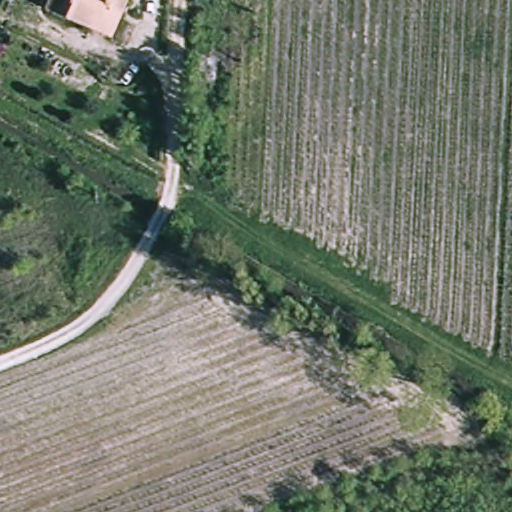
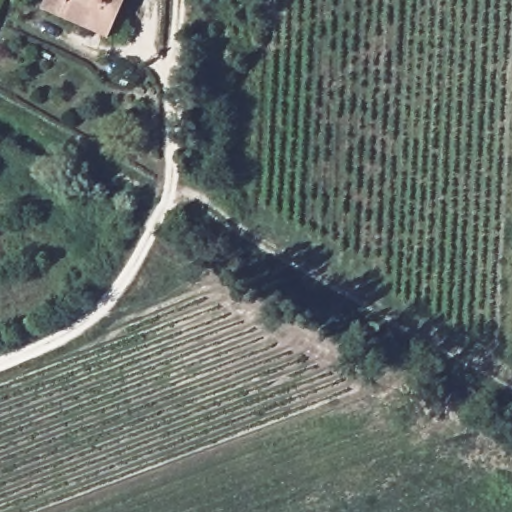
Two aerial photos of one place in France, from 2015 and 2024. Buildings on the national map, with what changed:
unchanged [(44,5),(46,0),(122,0),(107,34),(44,5)]

